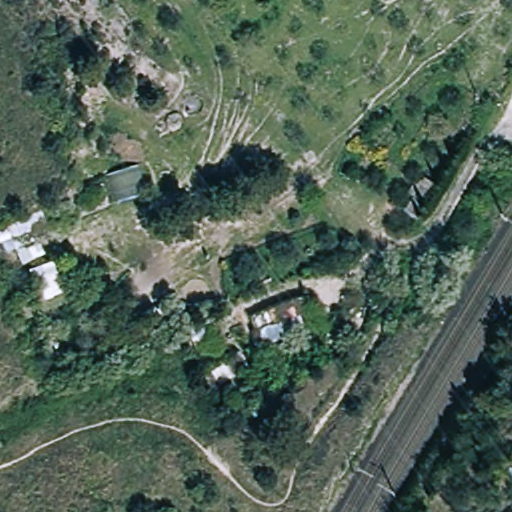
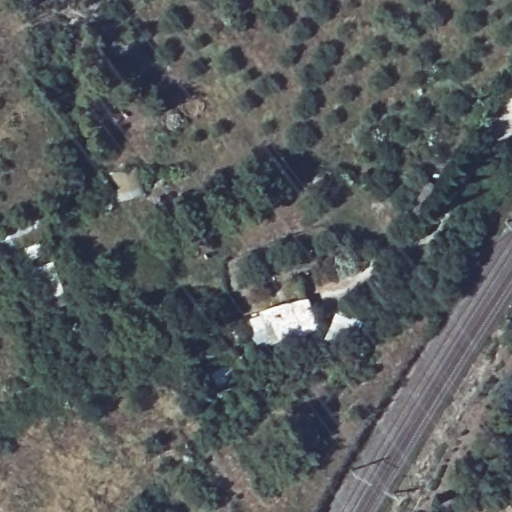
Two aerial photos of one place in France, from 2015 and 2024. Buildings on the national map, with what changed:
unchanged [(4,228),(40,213),(49,234),(13,249),(4,228)]
unchanged [(250,319),(292,303),(298,318),(310,314),(316,328),(262,347),(250,319)]

